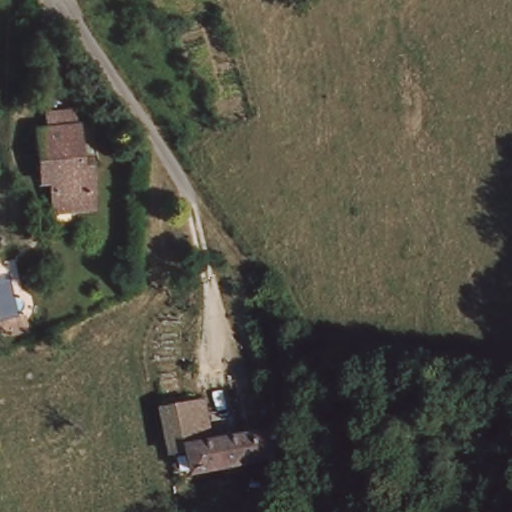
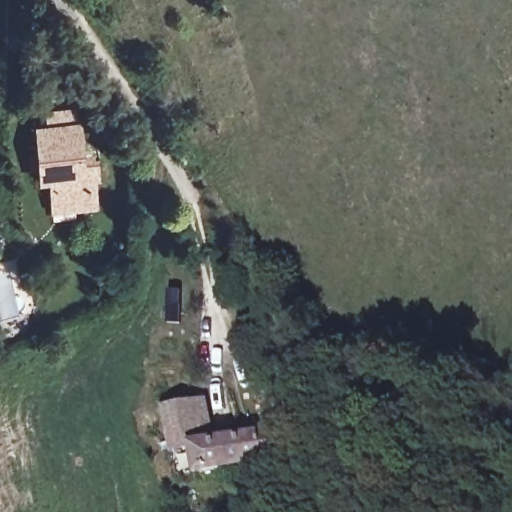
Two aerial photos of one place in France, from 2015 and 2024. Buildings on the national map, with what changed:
unchanged [(9,52),(20,51),(50,50),(50,81),(20,82),(10,82),(9,52)]
unchanged [(42,173),(35,134),(47,133),(45,117),(75,113),(77,129),(83,164),(92,164),(97,205),(59,211),(54,184),(44,185),(42,173)]
unchanged [(156,453),(148,410),(175,403),(180,401),(187,439),(243,424),(242,388),(262,380),(266,416),(268,452),(182,473),(177,448),(156,453)]

